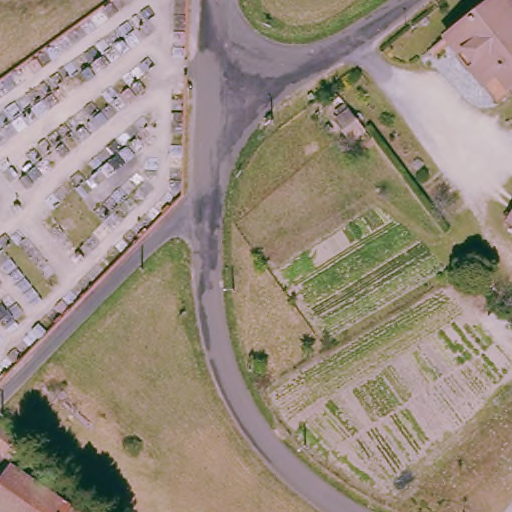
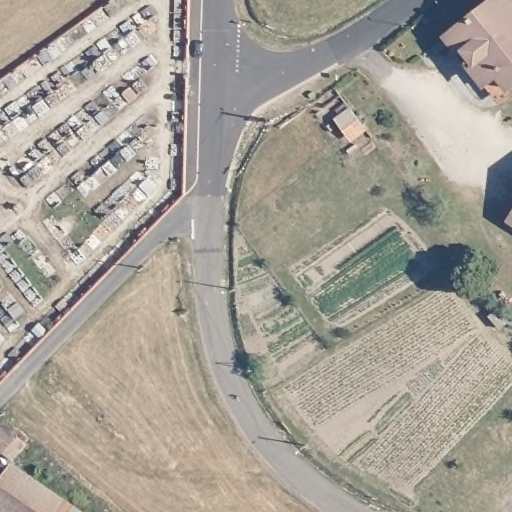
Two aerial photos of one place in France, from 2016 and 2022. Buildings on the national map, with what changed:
unchanged [(490,0),(512,0),(512,94),(511,95),(501,82),(484,88),(444,39),(490,0)]
unchanged [(348,134),(334,116),(347,107),(360,125),(348,134)]
unchanged [(1,461),(0,461),(0,438),(11,446),(1,461)]
unchanged [(16,468),(81,512),(2,512),(0,511),(0,493),(16,468)]

